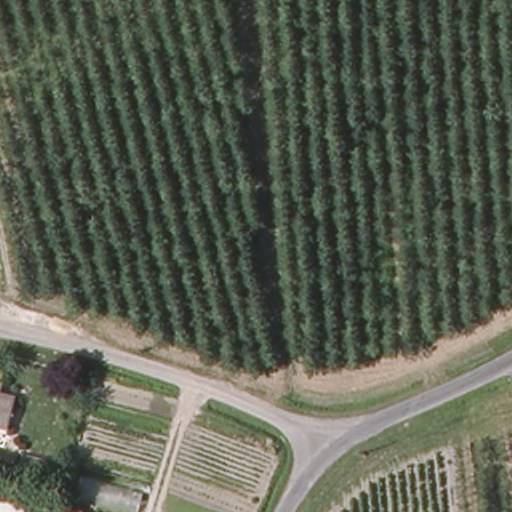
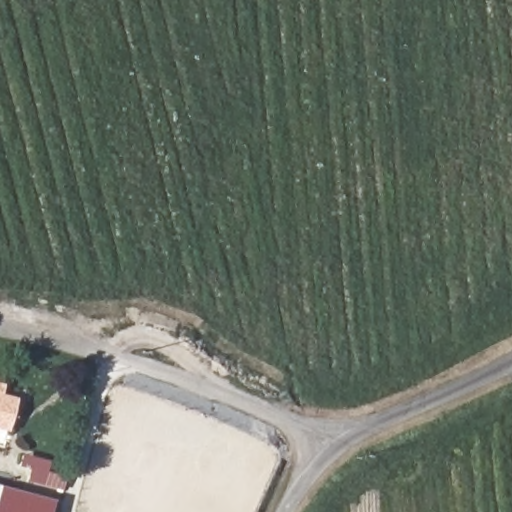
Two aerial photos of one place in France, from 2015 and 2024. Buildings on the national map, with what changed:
unchanged [(0,423),(0,378),(29,385),(27,397),(41,402),(33,432),(0,423)]
new [(31,468),(19,466),(23,452),(51,460),(48,471),(66,476),(62,491),(27,480),(31,468)]
new [(54,512),(0,512),(0,485),(57,501),(54,512)]

